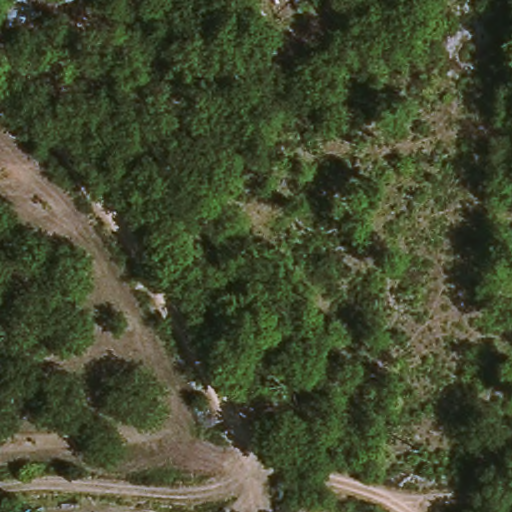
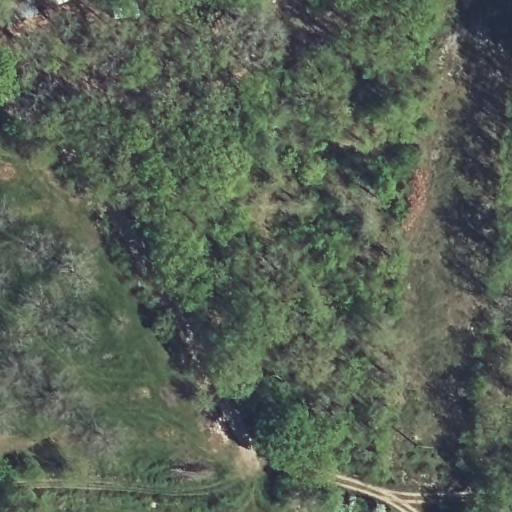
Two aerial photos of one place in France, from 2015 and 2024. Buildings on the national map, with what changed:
unchanged [(40,9),(38,17),(4,27),(0,1),(0,0),(66,0),(40,9)]
unchanged [(318,2),(282,18),(273,0),(317,0),(318,2)]

